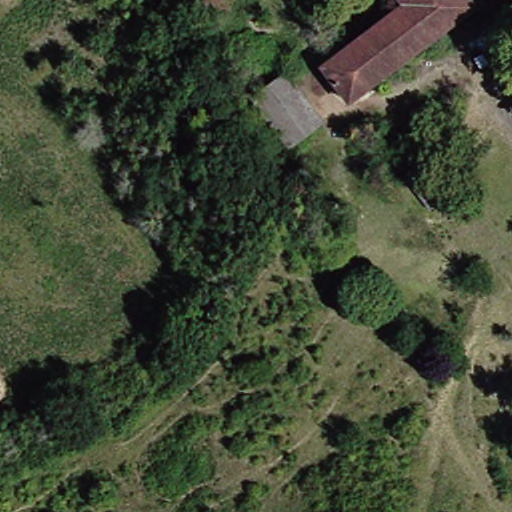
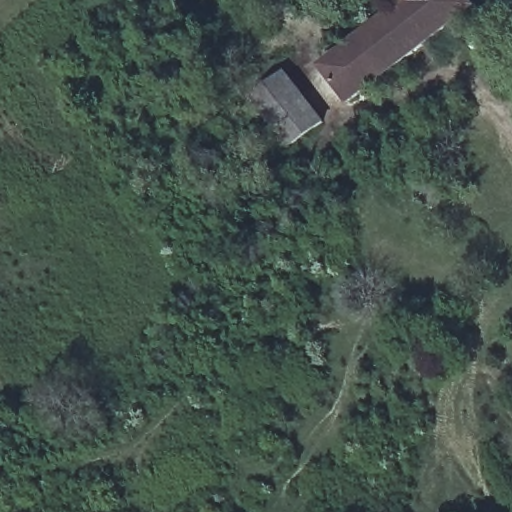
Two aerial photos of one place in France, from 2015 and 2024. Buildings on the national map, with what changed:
unchanged [(465,11),(340,104),(313,67),(394,5),(390,0),(457,0),(465,11)]
unchanged [(286,147),(247,99),(280,76),(317,122),(286,147)]

